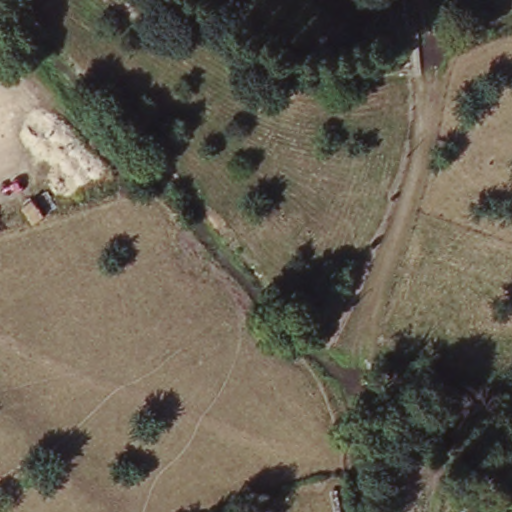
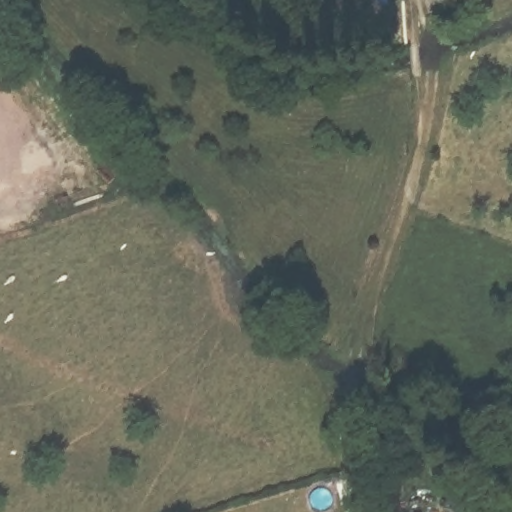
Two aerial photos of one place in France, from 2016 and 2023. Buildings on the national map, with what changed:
[]

